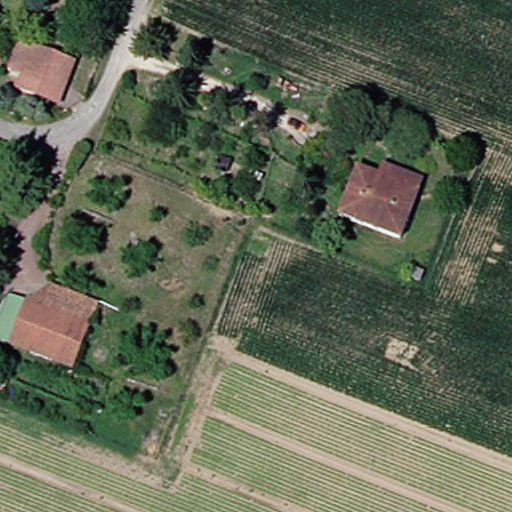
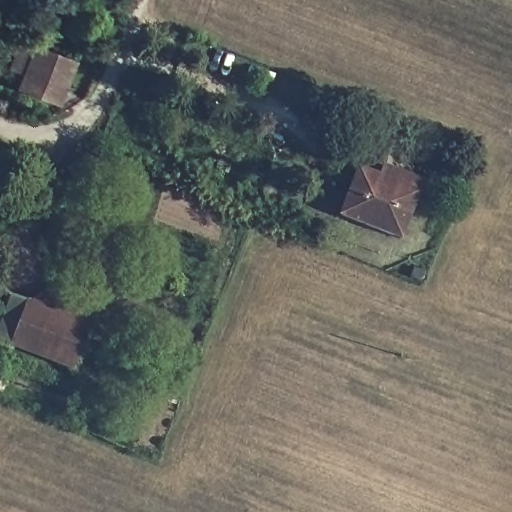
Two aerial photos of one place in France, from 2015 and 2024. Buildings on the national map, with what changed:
unchanged [(47,110),(27,102),(33,89),(17,83),(28,56),(43,62),(44,61),(80,76),(72,97),(64,117),(47,110)]
unchanged [(341,215),(361,166),(381,174),(386,162),(430,180),(425,192),(406,241),(341,215)]
unchanged [(76,369),(65,365),(15,346),(31,302),(81,321),(92,325),(76,369)]

